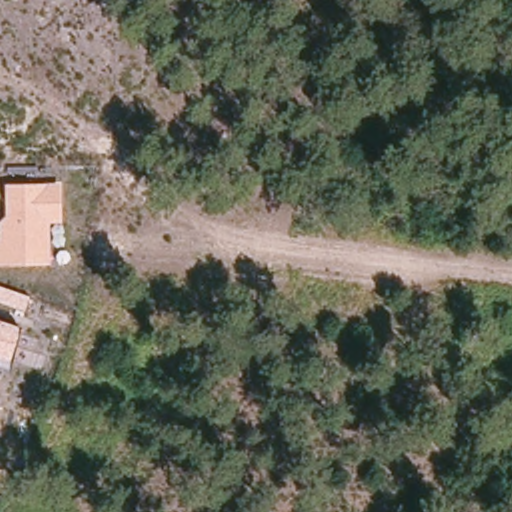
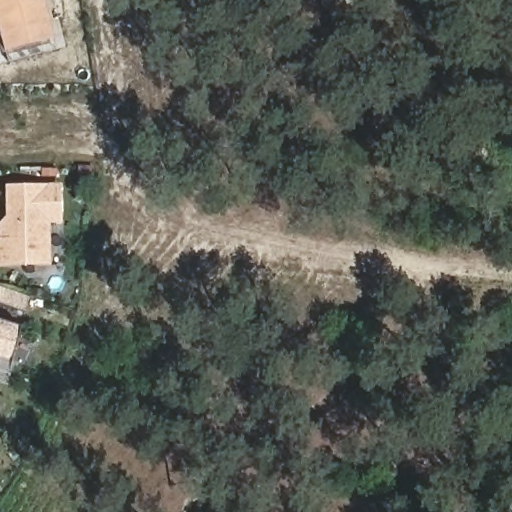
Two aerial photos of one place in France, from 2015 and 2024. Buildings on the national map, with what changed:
new [(64,42),(17,53),(7,19),(0,22),(0,0),(54,0),(64,42)]
unchanged [(50,224),(50,265),(0,265),(0,221),(5,218),(5,183),(64,182),(64,224),(50,224)]
unchanged [(0,304),(0,285),(32,296),(24,313),(0,304)]
unchanged [(0,366),(0,323),(19,329),(7,368),(0,366)]

